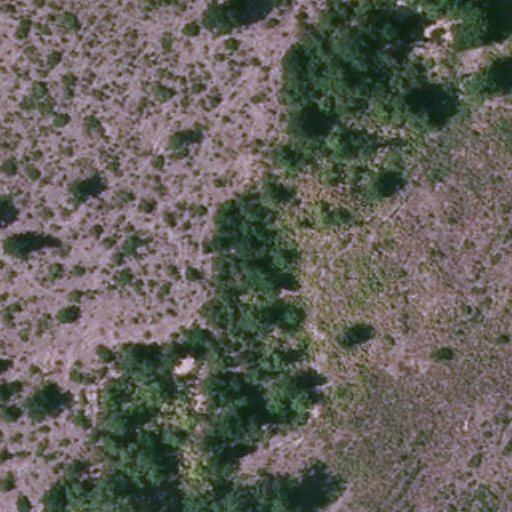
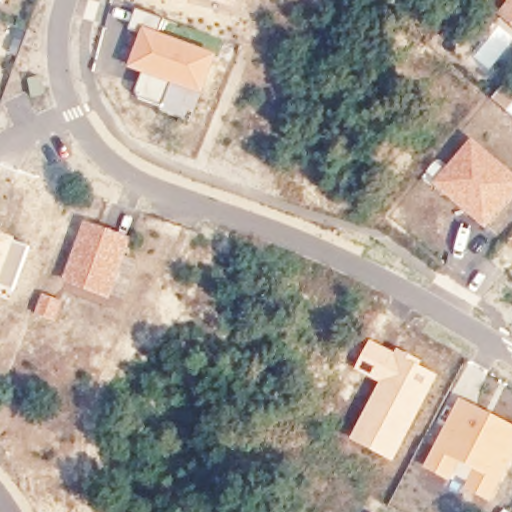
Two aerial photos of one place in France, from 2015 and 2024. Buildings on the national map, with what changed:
new [(160,0),(187,0),(185,7),(160,0)]
new [(200,0),(236,0),(234,9),(200,0)]
new [(497,15),(507,1),(506,0),(512,0),(512,27),(497,15)]
new [(166,19),(160,32),(219,54),(204,96),(171,83),(163,107),(139,97),(136,91),(145,74),(129,69),(143,32),(131,28),(138,8),(166,19)]
new [(500,89),(512,98),(512,115),(492,100),(500,89)]
new [(435,161),(445,168),(471,137),(512,172),(512,198),(485,229),(422,176),(435,161)]
new [(133,239),(111,298),(63,282),(86,222),(133,239)]
new [(0,289),(0,234),(16,240),(30,246),(11,293),(0,289)]
new [(40,293),(62,301),(56,322),(33,315),(40,293)]
new [(378,383),(355,367),(370,340),(395,352),(396,350),(438,376),(393,462),(349,439),(378,383)]
new [(459,398),(512,425),(512,458),(490,502),(461,489),(421,467),(459,398)]
new [(507,512),(501,512),(503,509),(507,512)]

